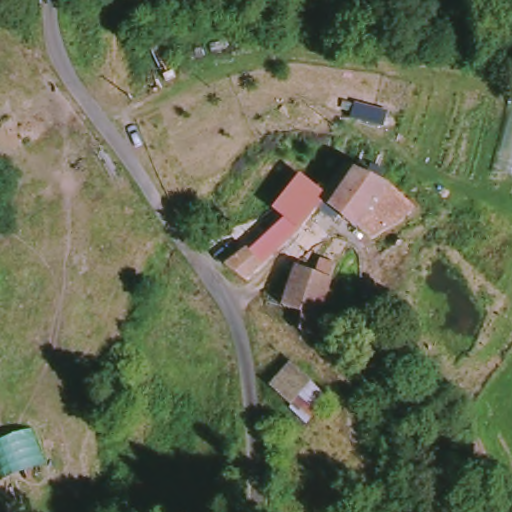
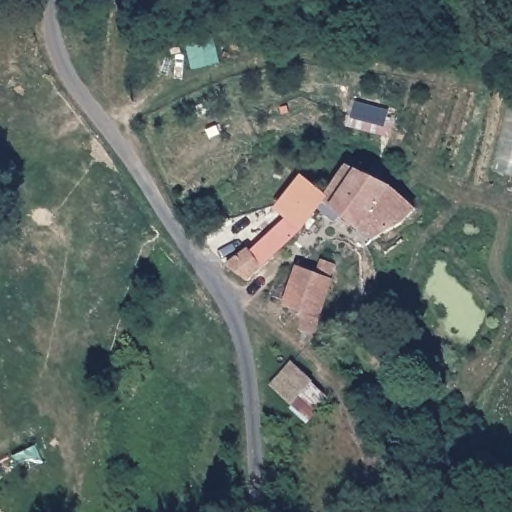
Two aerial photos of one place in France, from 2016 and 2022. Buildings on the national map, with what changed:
unchanged [(403,220),(390,225),(370,237),(360,226),(359,230),(329,205),(320,199),(346,163),(355,167),(361,171),(366,162),(381,169),(376,179),(392,187),(414,207),(403,220)]
unchanged [(317,191),(310,200),(319,209),(302,229),(286,215),(275,205),(298,176),(317,191)]
unchanged [(224,263),(246,247),(260,266),(246,280),(224,263)]
unchanged [(313,272),(319,258),(334,263),(331,277),(318,319),(316,336),(299,330),(300,311),(281,304),(294,265),(313,272)]
unchanged [(294,413),(296,407),(275,387),(297,362),(318,383),(336,401),(313,427),(294,413)]

